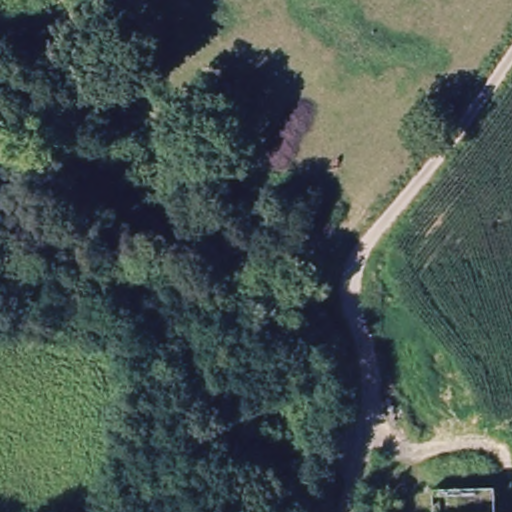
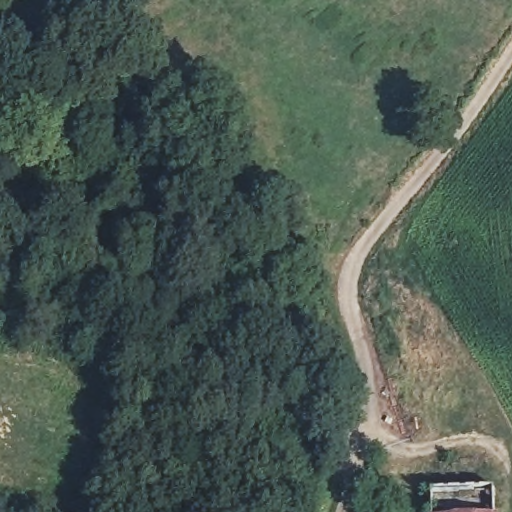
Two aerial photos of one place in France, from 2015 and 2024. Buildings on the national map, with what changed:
unchanged [(495,491),(498,497),(499,512),(434,512),(433,496),(495,491)]

